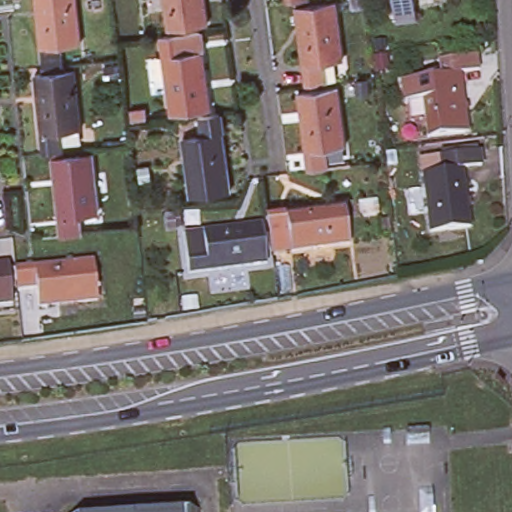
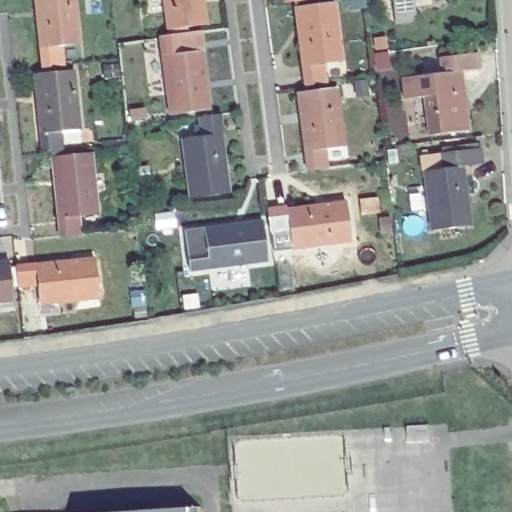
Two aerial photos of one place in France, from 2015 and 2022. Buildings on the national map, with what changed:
unchanged [(73,0),(78,42),(58,44),(60,63),(42,64),(35,0),(73,0)]
unchanged [(202,0),(204,22),(166,27),(163,0),(202,0)]
unchanged [(291,5),(329,0),(337,59),(319,62),(321,80),(302,82),(291,5)]
unchanged [(402,7),(401,0),(420,0),(421,5),(402,7)]
unchanged [(160,34),(198,30),(199,38),(208,108),(171,113),(165,73),(160,34)]
unchanged [(426,89),(406,91),(404,74),(442,69),(439,52),(444,52),(478,48),(480,64),(461,67),(471,127),(458,128),(432,130),(426,89)]
unchanged [(34,71),(73,68),(78,125),(59,127),(61,147),(41,149),(34,71)]
unchanged [(306,168),(294,90),(331,84),(341,143),(322,146),(326,165),(306,168)]
unchanged [(219,112),(230,191),(191,197),(183,138),(203,135),(200,115),(219,112)]
unchanged [(445,163),(443,149),(461,146),(482,143),(484,157),(464,160),(471,204),(472,220),(432,225),(424,166),(445,163)]
unchanged [(96,209),(77,211),(78,230),(60,232),(54,186),(51,155),(88,152),(96,209)]
unchanged [(299,242),(296,224),(275,226),(272,204),(353,194),(355,213),(358,233),(324,238),(299,242)]
unchanged [(191,262),(186,223),(266,213),(271,252),(191,262)]
unchanged [(14,260),(94,253),(97,293),(38,298),(37,279),(17,280),(14,260)]
unchanged [(0,295),(0,256),(5,256),(10,294),(0,295)]
unchanged [(191,507),(192,512),(107,512),(191,507)]

